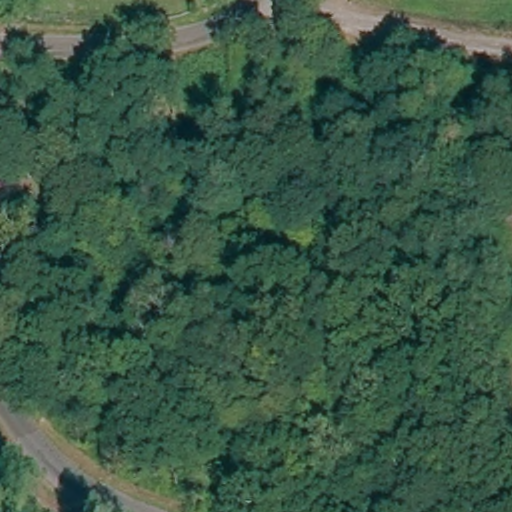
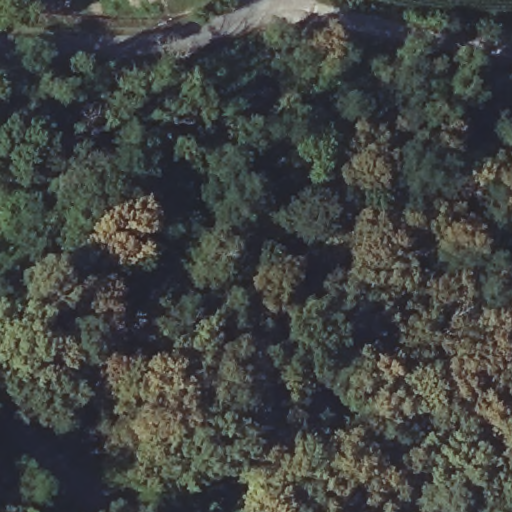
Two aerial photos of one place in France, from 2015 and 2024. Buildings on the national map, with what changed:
[]

